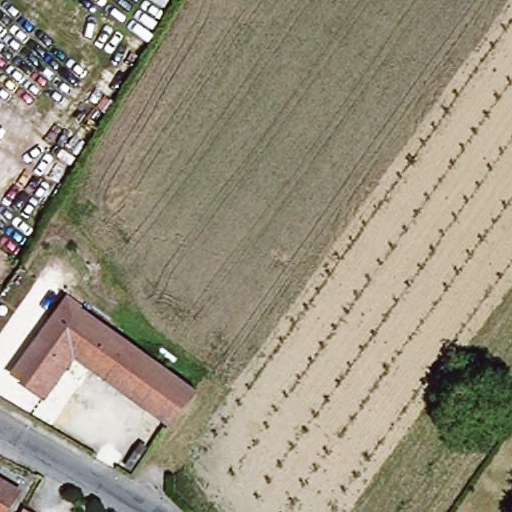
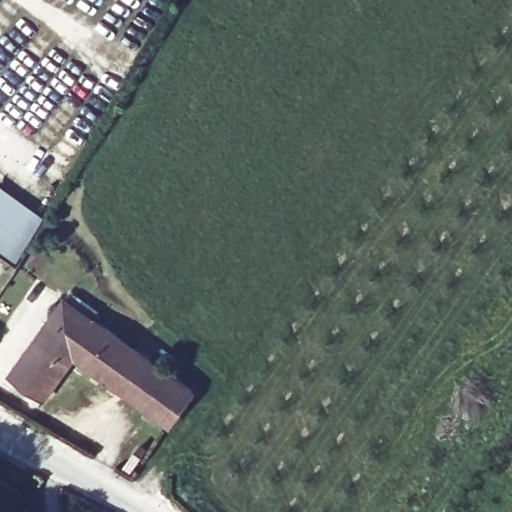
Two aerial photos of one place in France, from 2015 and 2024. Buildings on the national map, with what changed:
new [(42,221),(13,266),(0,256),(0,189),(42,221)]
unchanged [(190,392),(167,427),(73,360),(50,392),(10,365),(58,294),(190,392)]
unchanged [(17,493),(5,512),(0,512),(0,482),(17,493)]

